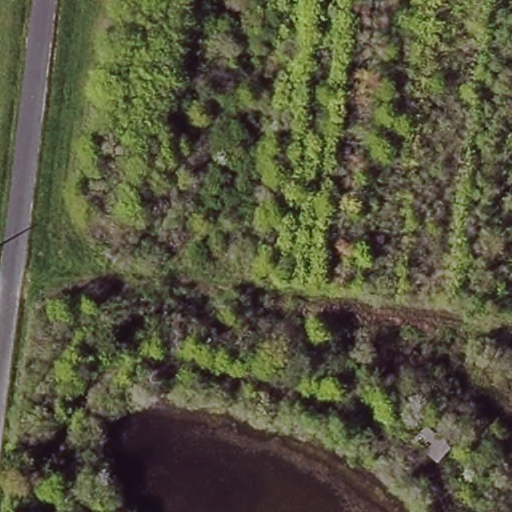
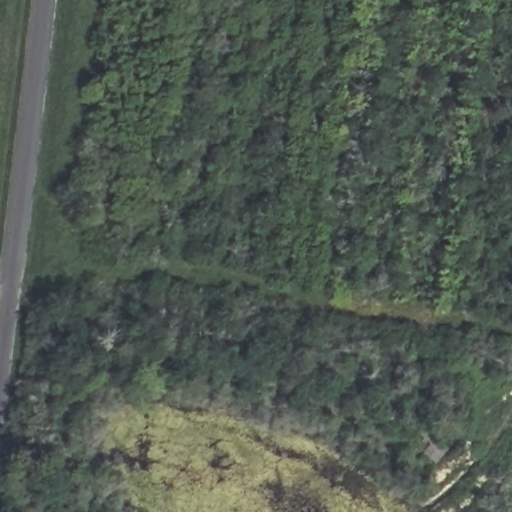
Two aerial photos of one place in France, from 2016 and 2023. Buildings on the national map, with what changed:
[]

